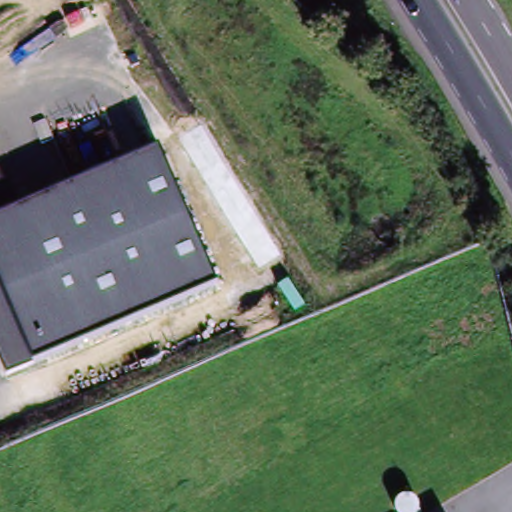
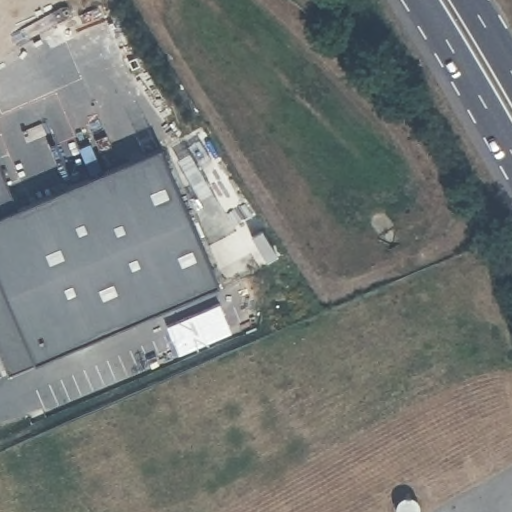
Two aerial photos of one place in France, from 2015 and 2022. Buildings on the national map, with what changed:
unchanged [(0,359),(0,169),(18,213),(161,148),(217,286),(6,375),(0,359)]

